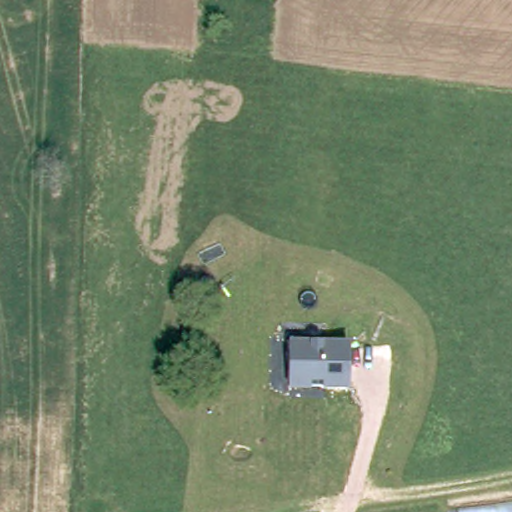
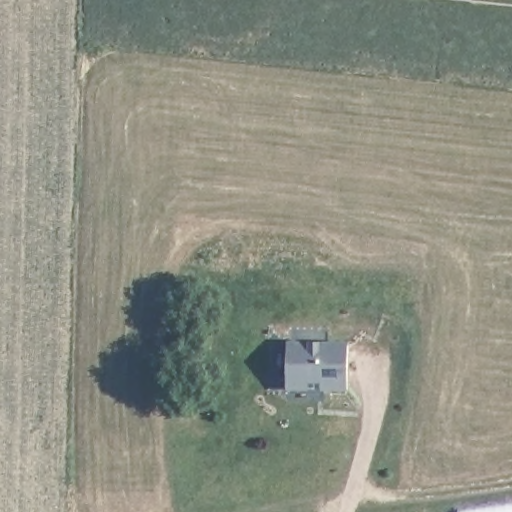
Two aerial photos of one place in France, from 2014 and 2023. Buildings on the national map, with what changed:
unchanged [(347,391),(289,389),(287,343),(347,343),(347,391)]
unchanged [(512,512),(463,512),(512,506),(512,512)]

